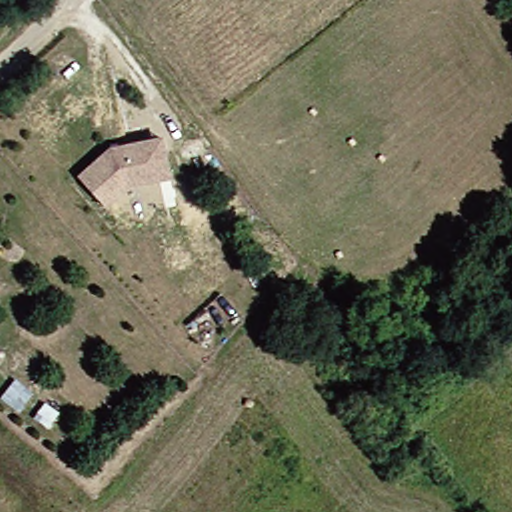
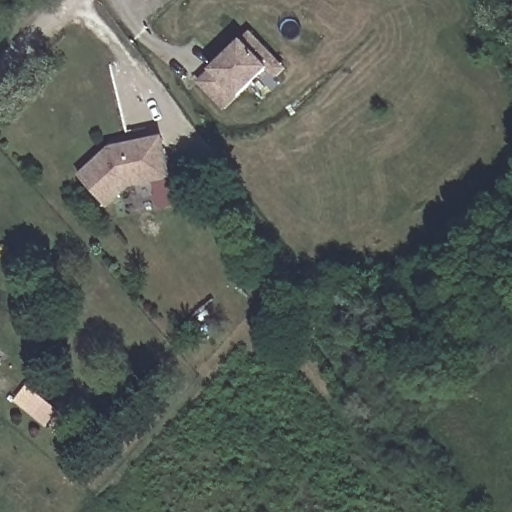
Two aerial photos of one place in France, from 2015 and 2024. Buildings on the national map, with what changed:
new [(269,68),(235,99),(222,110),(196,82),(208,69),(242,39),(249,31),(276,58),(269,68)]
unchanged [(106,202),(80,171),(112,144),(153,135),(163,133),(171,173),(162,175),(130,181),(106,202)]

